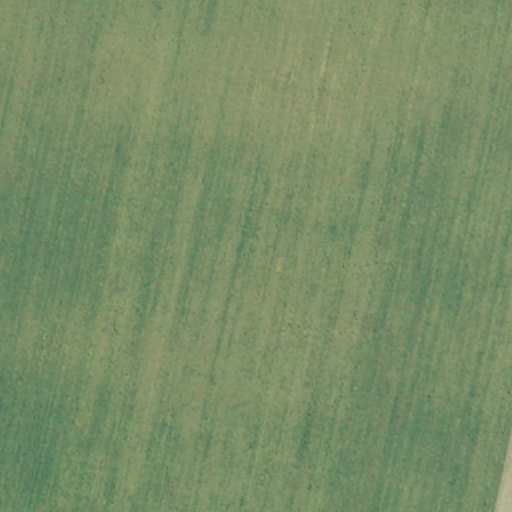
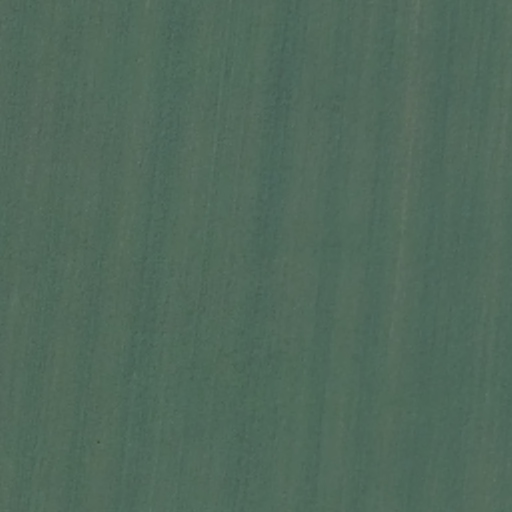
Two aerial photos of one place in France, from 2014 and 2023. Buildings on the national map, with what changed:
[]

